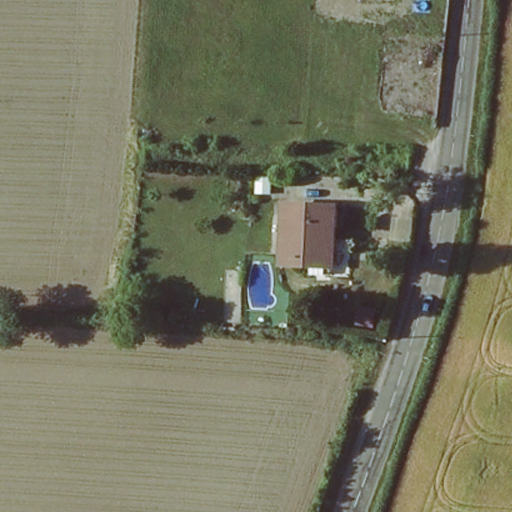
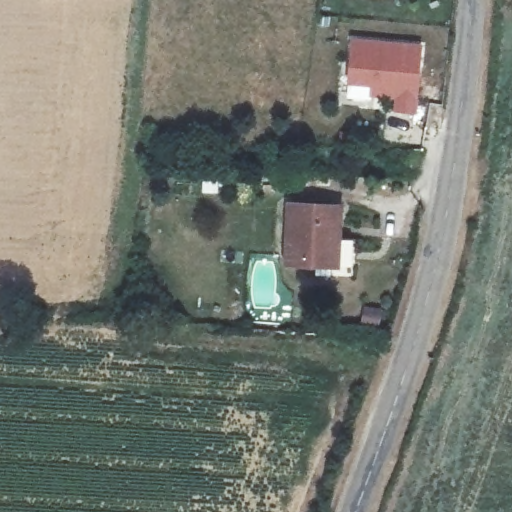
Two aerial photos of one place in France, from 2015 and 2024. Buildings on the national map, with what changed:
new [(423,46),(417,117),(393,116),(394,107),(391,107),(392,102),(368,101),(369,89),(348,87),(350,40),(423,46)]
unchanged [(343,211),(343,244),(332,243),(331,264),(306,263),(306,268),(290,267),(293,207),(343,211)]

